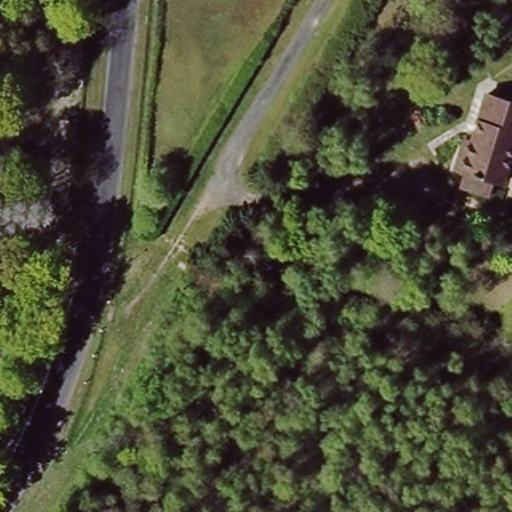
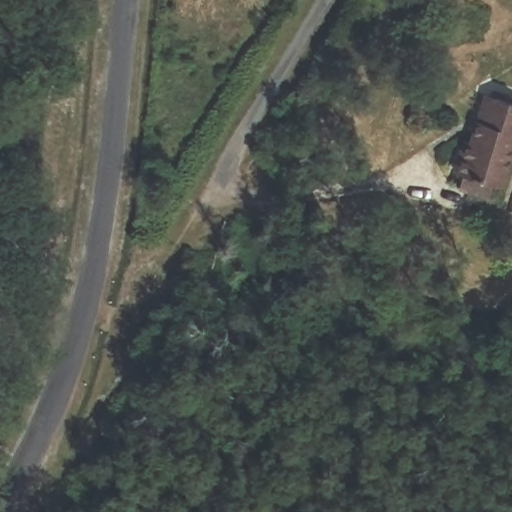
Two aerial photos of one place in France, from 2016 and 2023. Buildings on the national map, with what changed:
unchanged [(463,169),(454,167),(464,136),(471,139),(486,94),(512,104),(512,142),(497,184),(488,181),(484,191),(458,182),(463,169)]

